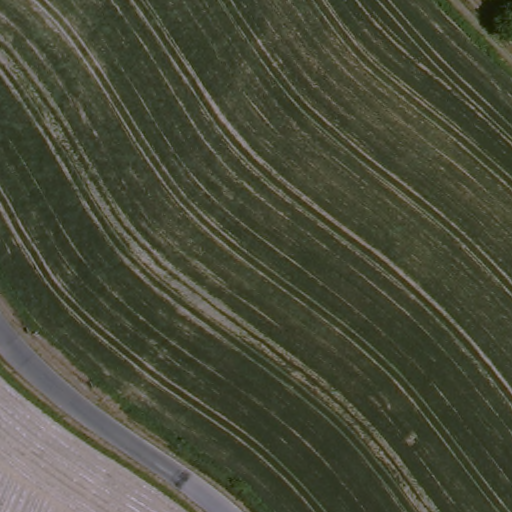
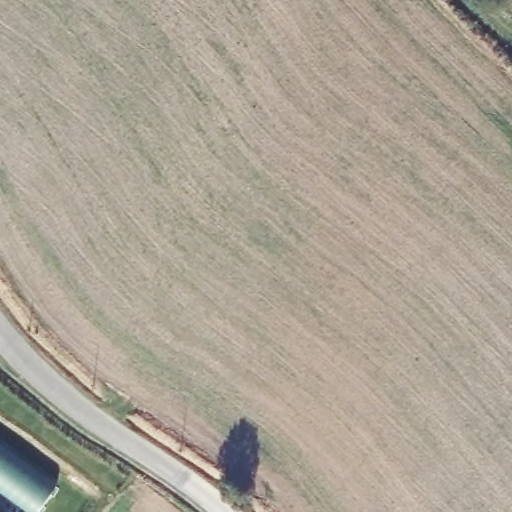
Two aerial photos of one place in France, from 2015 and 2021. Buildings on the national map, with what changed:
new [(58,483),(37,512),(0,512),(0,440),(58,483)]

